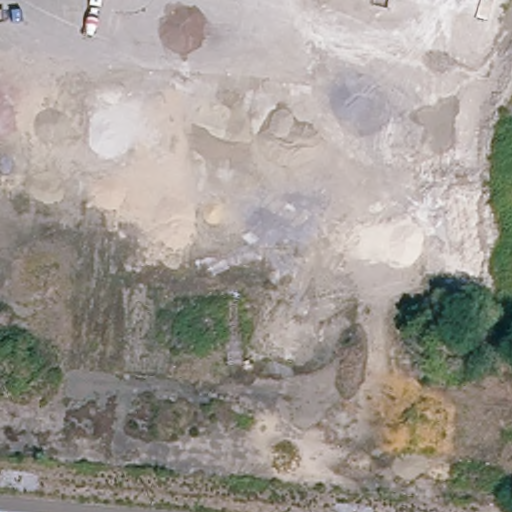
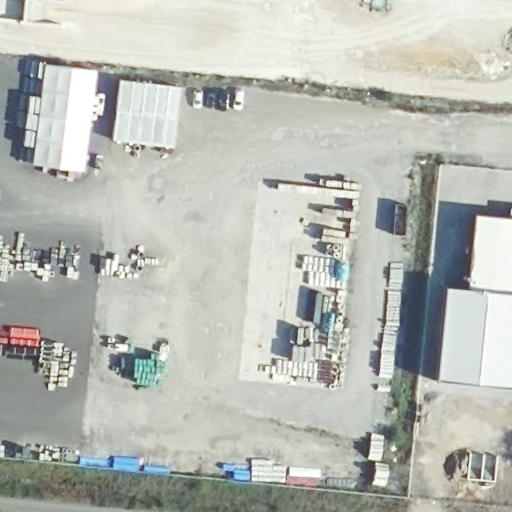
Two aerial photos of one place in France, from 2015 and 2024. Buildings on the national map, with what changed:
new [(31,106),(35,106),(42,62),(97,68),(89,142),(83,171),(30,163),(32,146),(22,145),(31,106)]
new [(118,78),(181,86),(173,146),(111,138),(118,78)]
new [(507,215),(509,205),(512,206),(512,290),(465,285),(473,212),(507,215)]
new [(442,284),(465,285),(512,290),(512,386),(435,378),(442,284)]

